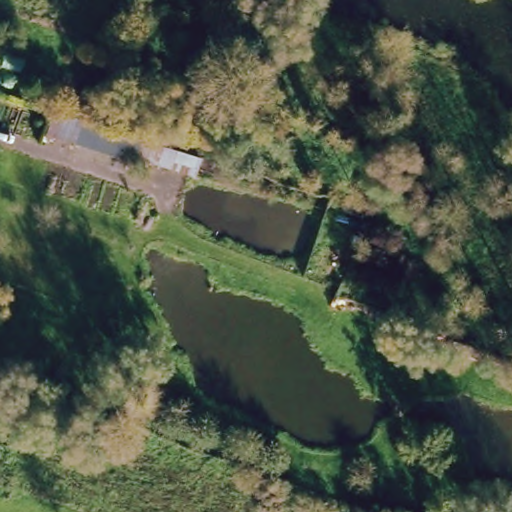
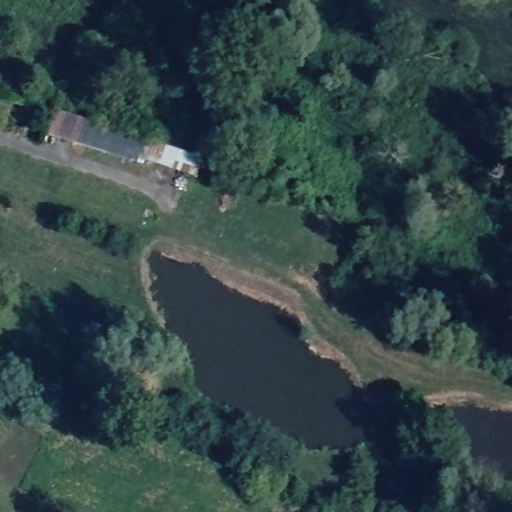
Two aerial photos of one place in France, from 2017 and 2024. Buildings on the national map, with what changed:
unchanged [(58,110),(207,159),(201,176),(80,136),(78,141),(50,132),(58,110)]
unchanged [(3,409),(0,408),(0,373),(9,375),(3,409)]

